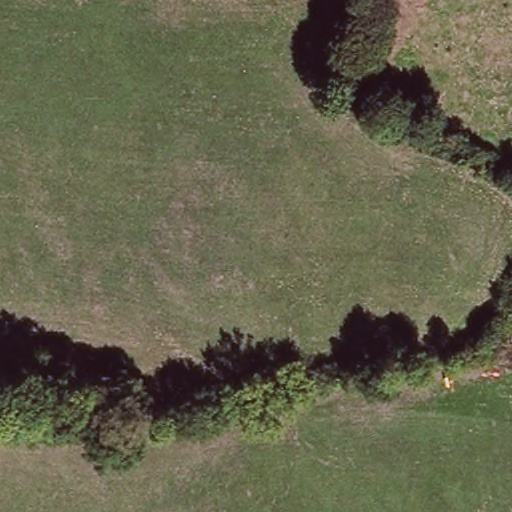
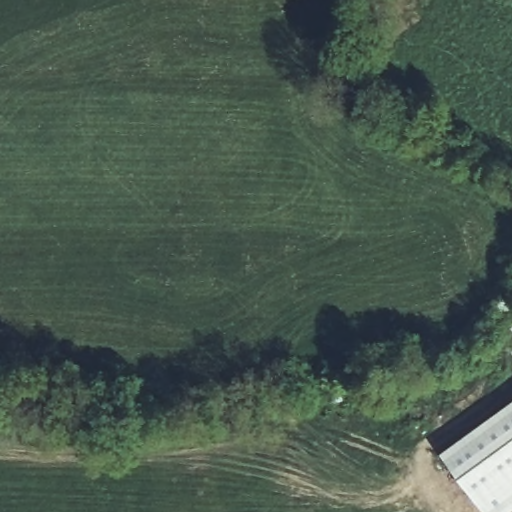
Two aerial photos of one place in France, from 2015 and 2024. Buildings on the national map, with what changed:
new [(512,512),(485,512),(442,453),(512,402),(512,512)]

